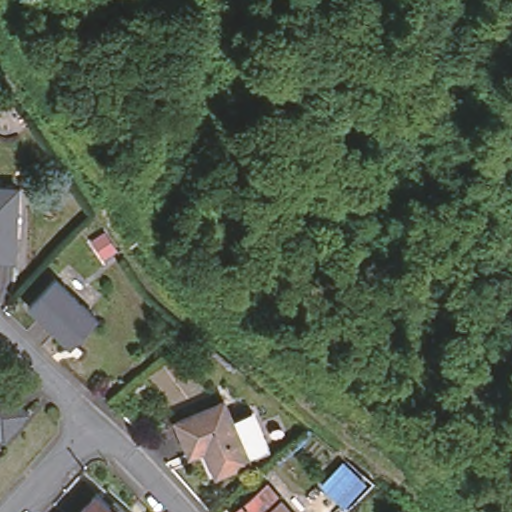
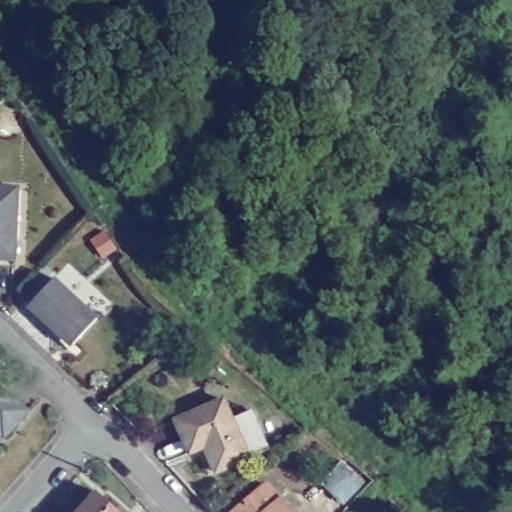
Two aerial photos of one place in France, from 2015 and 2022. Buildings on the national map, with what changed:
unchanged [(7,252),(0,251),(0,182),(13,184),(7,252)]
unchanged [(65,345),(50,330),(52,327),(25,301),(52,273),(95,315),(65,345)]
unchanged [(0,428),(0,382),(25,405),(2,430),(0,428)]
unchanged [(188,446),(173,414),(219,393),(246,451),(214,466),(202,440),(188,446)]
unchanged [(327,485),(346,468),(366,489),(347,506),(327,485)]
unchanged [(279,495),(293,512),(230,512),(229,510),(260,484),(274,499),(279,495)]
unchanged [(86,489),(111,512),(64,512),(86,489)]
unchanged [(117,510),(119,512),(115,512),(117,510)]

